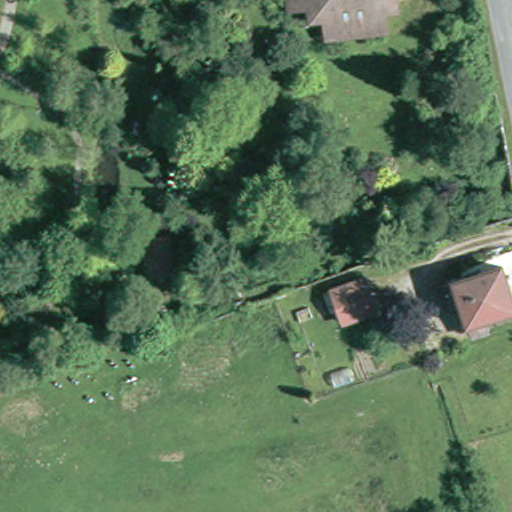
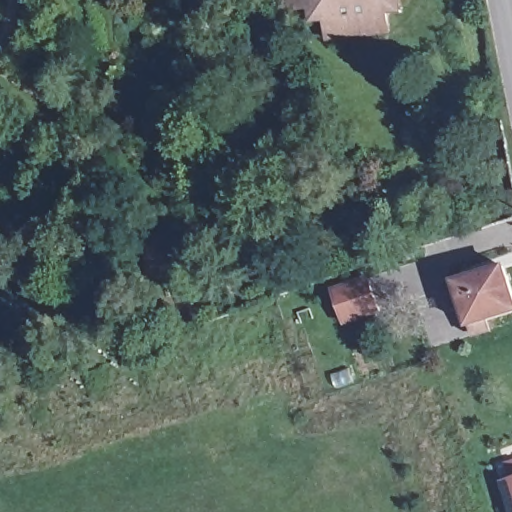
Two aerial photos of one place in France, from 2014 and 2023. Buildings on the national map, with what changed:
unchanged [(315,3),(299,5),(298,0),(403,0),(403,6),(390,7),(392,24),(377,26),(376,24),(362,27),(347,27),(347,29),(332,31),(330,15),(317,16),(315,3)]
unchanged [(150,278),(144,241),(169,237),(173,274),(150,278)]
unchanged [(486,320),(490,331),(472,337),(454,283),(503,267),(512,295),(512,312),(486,320)]
unchanged [(334,282),(367,272),(377,306),(344,316),(334,282)]
new [(508,512),(499,481),(512,477),(512,512),(508,512)]

